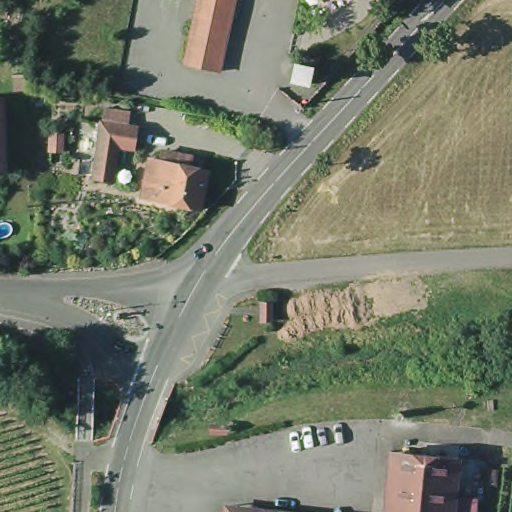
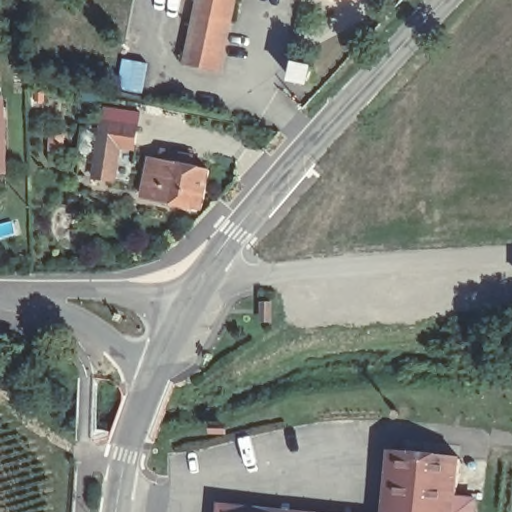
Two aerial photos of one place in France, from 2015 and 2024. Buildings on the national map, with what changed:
unchanged [(198,0),(234,0),(220,66),(186,59),(198,0)]
unchanged [(0,172),(0,105),(8,104),(12,171),(12,176),(0,177),(0,172)]
unchanged [(127,164),(113,162),(108,195),(88,192),(97,137),(100,122),(126,126),(124,142),(131,143),(127,164)]
unchanged [(197,215),(158,208),(140,204),(147,164),(157,166),(159,157),(175,160),(187,162),(185,172),(205,175),(197,215)]
unchanged [(269,302),(269,320),(262,320),(262,302),(269,302)]
unchanged [(388,450),(402,451),(459,456),(456,497),(477,498),(475,512),(384,512),(385,499),(388,450)]
unchanged [(280,512),(225,512),(225,507),(280,512)]

